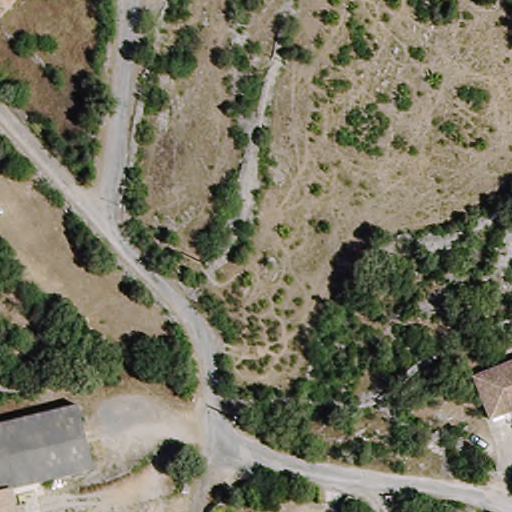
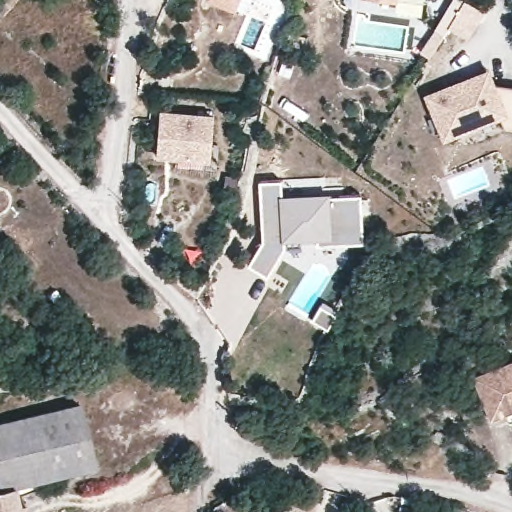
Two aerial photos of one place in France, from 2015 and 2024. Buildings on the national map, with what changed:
unchanged [(0,0),(19,0),(0,20),(0,0)]
new [(206,0),(240,0),(236,12),(206,0)]
new [(392,0),(397,0),(397,1),(392,0)]
new [(504,130),(499,120),(442,142),(423,93),(489,67),(495,84),(512,86),(512,131),(504,130)]
new [(210,162),(156,159),(159,110),(213,113),(210,162)]
new [(281,181),(281,195),(329,192),(329,196),(361,194),(364,244),(317,247),(317,240),(284,242),(284,249),(267,275),(248,264),(263,240),(259,182),(281,181)]
unchanged [(512,360),(512,414),(493,421),(476,373),(512,360)]
unchanged [(96,467),(8,486),(0,486),(0,418),(83,402),(96,467)]
unchanged [(13,512),(0,512),(0,486),(8,486),(13,512)]

